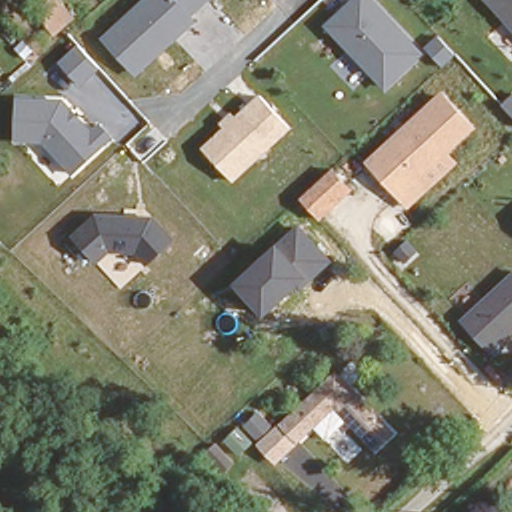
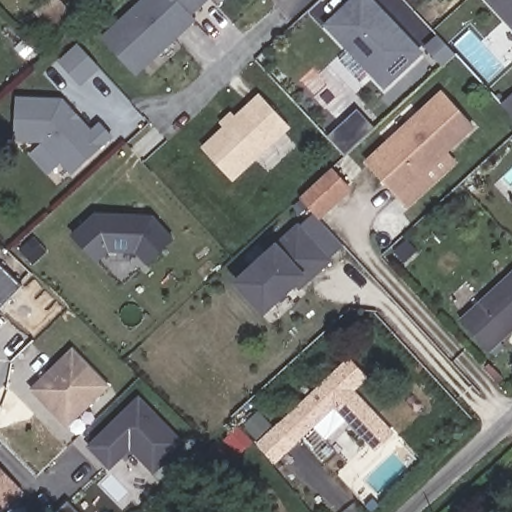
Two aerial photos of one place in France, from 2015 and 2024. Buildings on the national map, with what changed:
new [(53,32),(50,29),(36,13),(52,0),(59,0),(70,12),(72,15),(53,32)]
unchanged [(144,0),(211,0),(193,17),(198,22),(138,78),(116,51),(104,37),(144,0)]
unchanged [(386,92),(326,24),(350,0),(376,0),(424,52),(386,92)]
unchanged [(489,0),(512,0),(512,25),(489,0)]
new [(79,43),(86,52),(104,37),(116,51),(99,66),(101,68),(80,86),(59,62),(79,43)]
unchanged [(411,209),(367,160),(444,91),(478,128),(451,153),(461,164),(411,209)]
unchanged [(233,183),(202,148),(222,128),(218,124),(235,109),(240,114),(261,93),(292,127),(233,183)]
unchanged [(504,104),(512,97),(512,113),(504,104)]
unchanged [(73,173),(44,142),(16,141),(20,100),(64,99),(94,129),(101,122),(114,139),(73,173)]
unchanged [(319,220),(301,199),(336,167),(356,188),(319,220)]
unchanged [(146,265),(134,253),(107,253),(96,262),(74,234),(96,213),(156,218),(175,240),(146,265)]
unchanged [(300,292),(296,287),(263,316),(234,280),(279,242),(280,243),(301,223),(334,262),(300,292)]
new [(0,307),(0,265),(21,286),(0,307)]
unchanged [(492,354),(459,318),(512,272),(512,337),(492,354)]
new [(68,428),(29,389),(72,346),(110,386),(68,428)]
unchanged [(258,446),(289,418),(341,366),(398,423),(382,440),(339,401),(305,433),(278,464),(258,446)]
new [(109,471),(88,446),(139,395),(186,443),(155,475),(131,450),(109,471)]
new [(0,512),(0,467),(25,492),(4,512),(0,512)]

